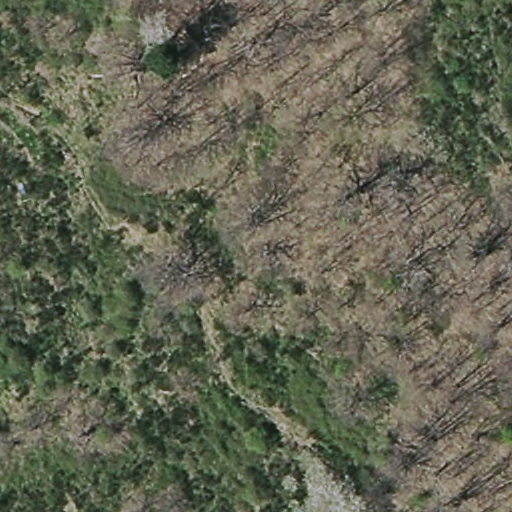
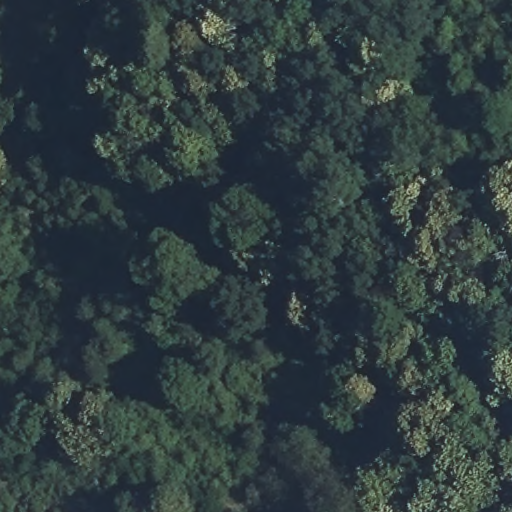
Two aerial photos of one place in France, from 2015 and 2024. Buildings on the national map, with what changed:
[]

